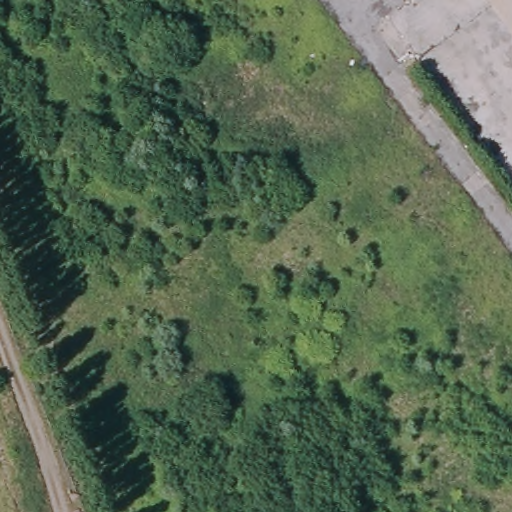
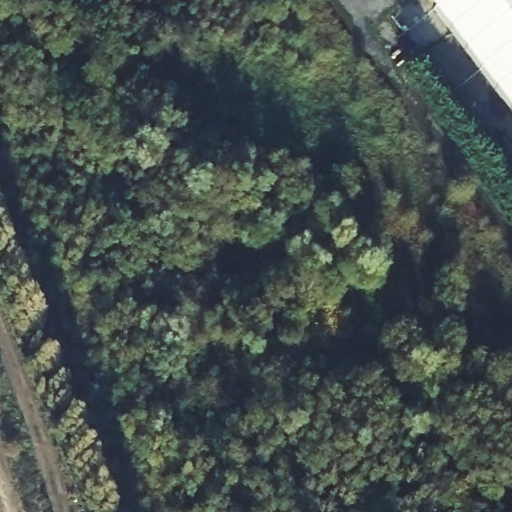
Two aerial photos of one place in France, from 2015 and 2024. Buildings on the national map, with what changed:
new [(434,0),(512,0),(512,121),(425,7),(434,0)]

